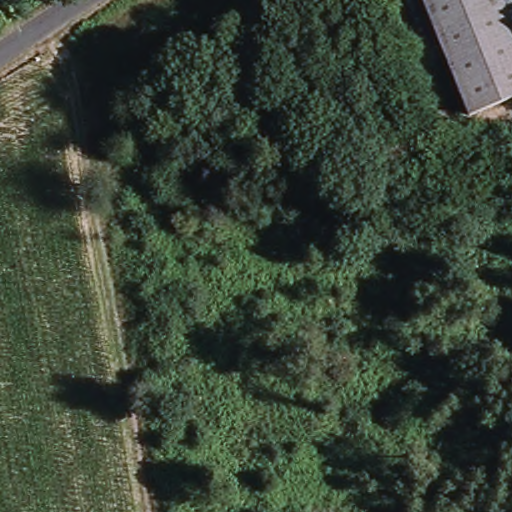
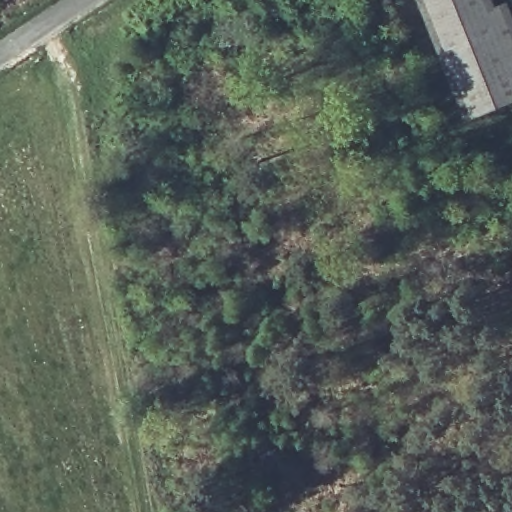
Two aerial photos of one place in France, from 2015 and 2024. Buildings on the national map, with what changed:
unchanged [(507,4),(512,16),(512,105),(467,124),(418,0),(491,0),(494,9),(507,4)]

